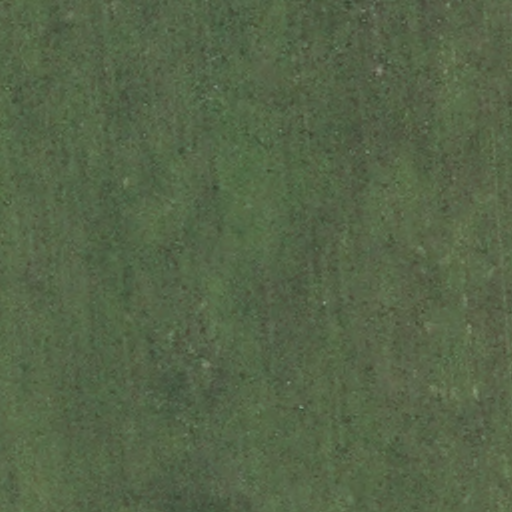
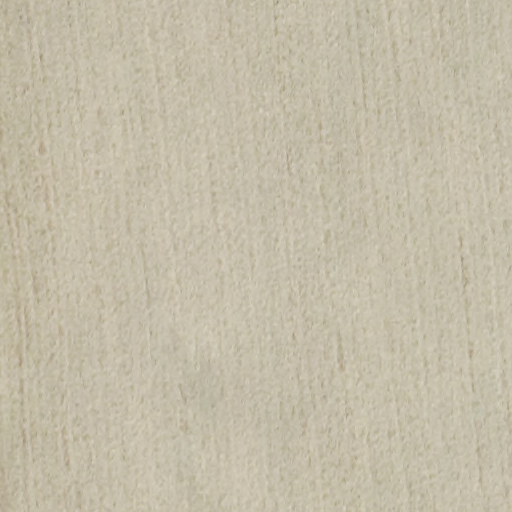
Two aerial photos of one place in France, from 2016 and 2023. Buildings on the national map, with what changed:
[]

